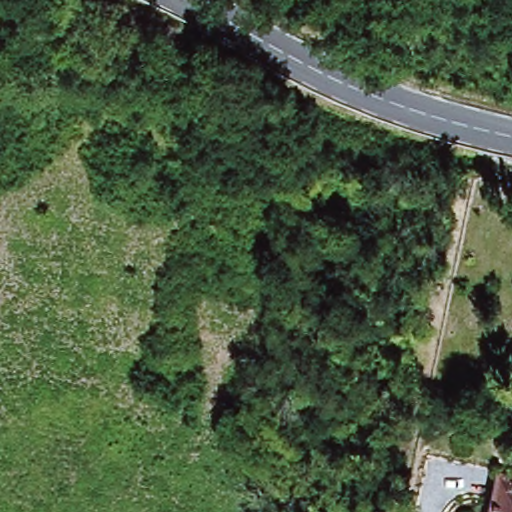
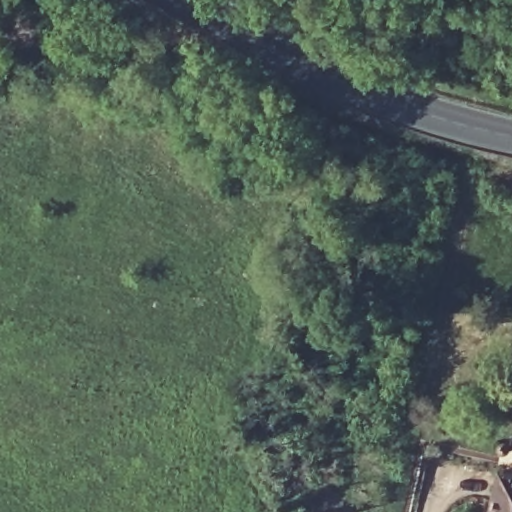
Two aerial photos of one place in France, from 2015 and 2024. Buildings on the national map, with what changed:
unchanged [(512,473),(512,512),(488,512),(496,470),(512,473)]

